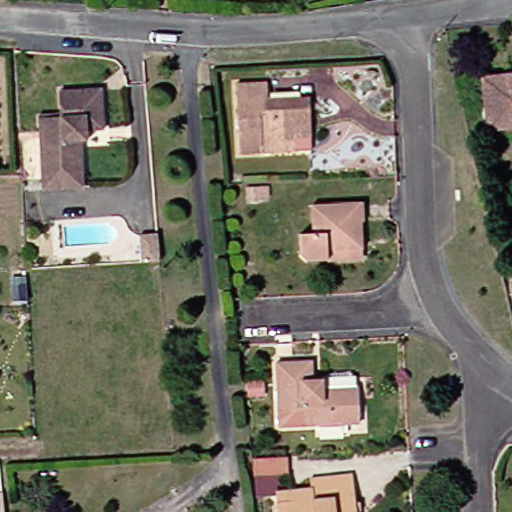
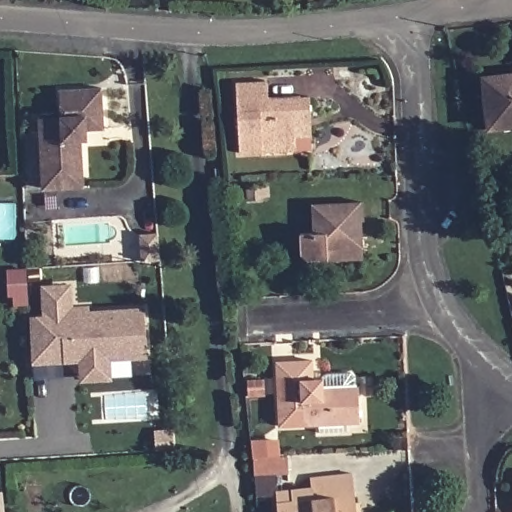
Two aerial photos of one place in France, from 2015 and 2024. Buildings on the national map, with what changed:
unchanged [(512,127),(499,128),(494,77),(512,75),(512,127)]
unchanged [(306,149),(249,153),(246,83),(278,82),(279,98),(320,97),(321,118),(322,148),(306,149)]
unchanged [(101,86),(103,127),(86,128),(87,138),(81,138),(83,185),(43,187),(39,129),(39,116),(60,115),(59,89),(101,86)]
unchanged [(279,186),(280,199),(258,200),(258,188),(279,186)]
unchanged [(337,259),(337,257),(318,260),(311,253),(311,233),(324,233),(323,205),(373,202),(374,220),(371,221),(373,247),(373,257),(337,259)]
unchanged [(141,233),(158,232),(160,259),(143,260),(141,233)]
new [(81,377),(81,372),(80,360),(65,360),(32,362),(29,316),(43,316),(42,286),(61,285),(62,307),(86,306),(87,311),(143,307),(146,355),(109,357),(110,371),(110,376),(81,377)]
unchanged [(324,435),(324,424),(285,426),(281,362),(316,361),(318,380),(327,379),(327,377),(333,372),(356,371),(361,375),(362,385),(364,422),(348,423),(348,434),(324,435)]
unchanged [(268,380),(269,396),(254,397),(253,381),(268,380)]
unchanged [(264,463),(271,463),(297,462),(298,477),(264,479),(264,463)]
unchanged [(286,497),(303,495),(321,493),(321,483),(363,478),(366,512),(288,512),(287,507),(286,497)]
unchanged [(3,492),(5,512),(0,512),(0,493),(3,492)]

